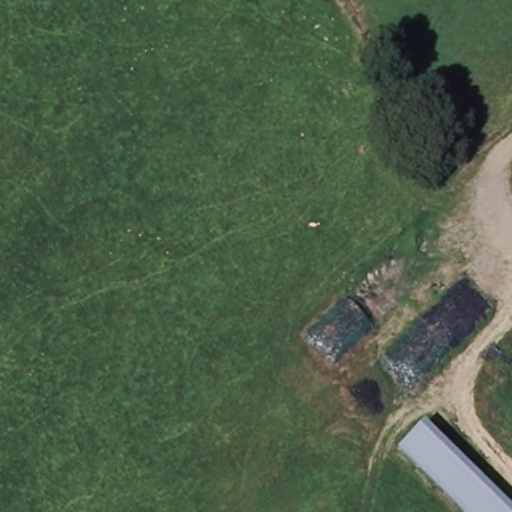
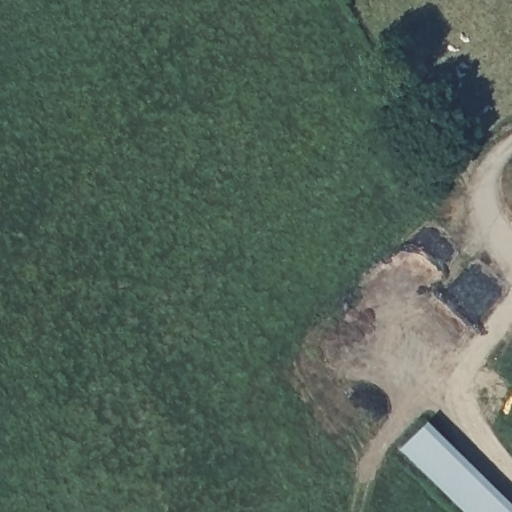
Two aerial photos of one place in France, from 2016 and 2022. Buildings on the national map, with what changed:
unchanged [(426,420),(512,503),(512,512),(465,512),(398,449),(426,420)]

